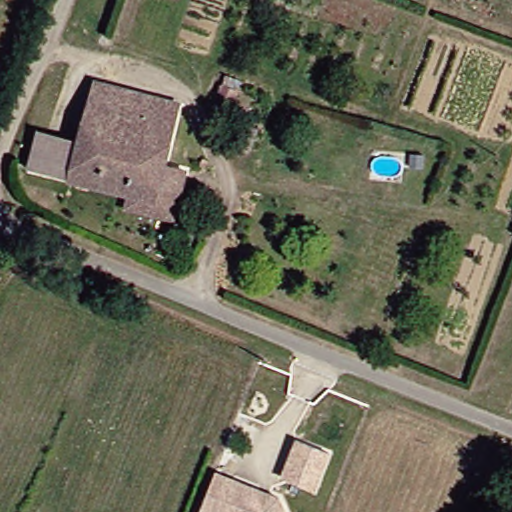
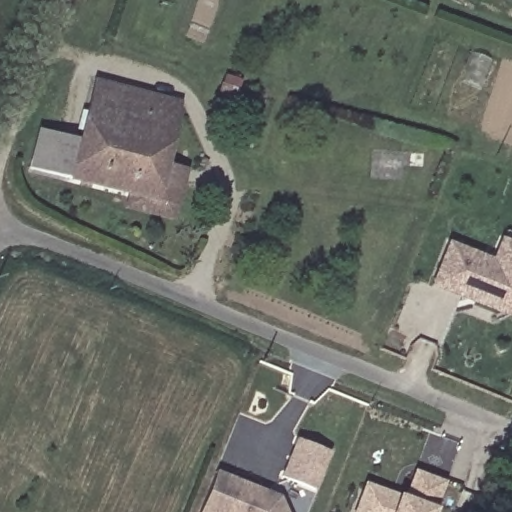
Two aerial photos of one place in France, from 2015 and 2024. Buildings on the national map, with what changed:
unchanged [(57,176),(71,113),(79,77),(164,97),(150,157),(163,160),(155,197),(150,215),(102,205),(106,187),(57,176)]
unchanged [(218,91),(221,80),(236,84),(229,115),(213,111),(218,91)]
unchanged [(29,126),(46,130),(51,109),(71,113),(57,176),(20,167),(29,126)]
new [(428,284),(444,244),(488,262),(496,240),(512,246),(512,317),(492,309),(428,284)]
unchanged [(297,438),(330,452),(316,490),(281,477),(297,438)]
unchanged [(220,470),(280,494),(288,512),(200,512),(204,504),(206,505),(220,470)]
new [(406,497),(417,470),(445,480),(433,512),(353,512),(365,482),(406,497)]

